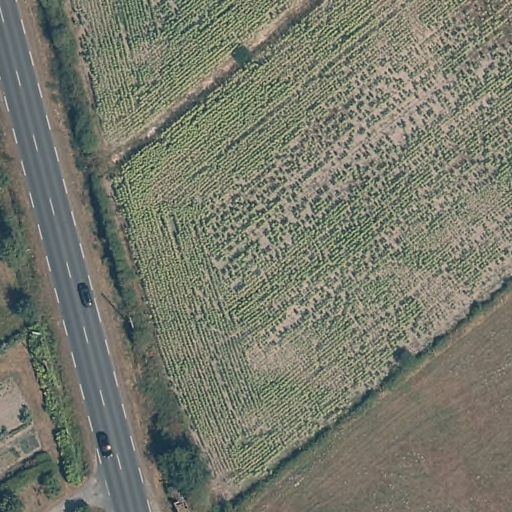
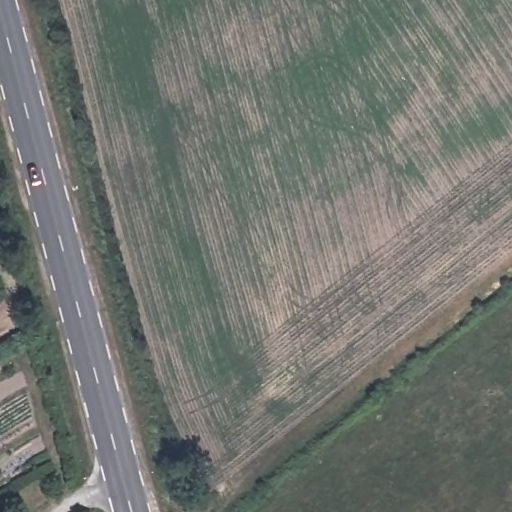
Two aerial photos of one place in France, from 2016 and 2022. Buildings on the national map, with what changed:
unchanged [(189,512),(179,512),(172,489),(181,487),(189,512)]

